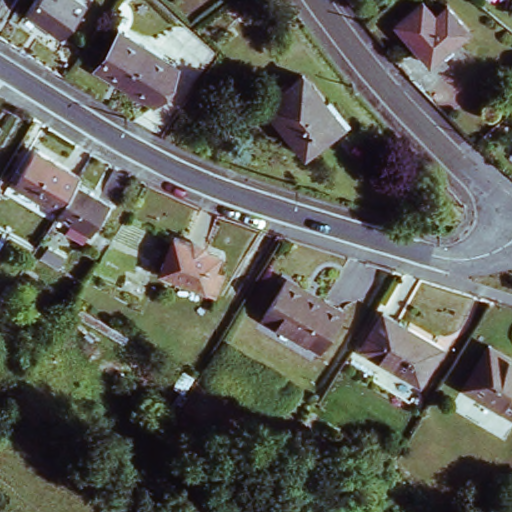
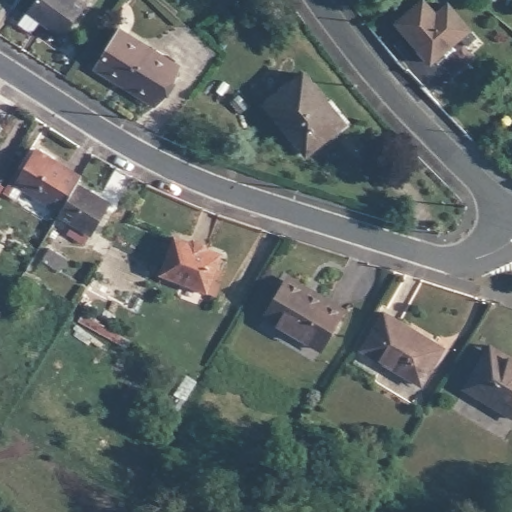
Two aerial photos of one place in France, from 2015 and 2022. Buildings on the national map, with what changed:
unchanged [(67,35),(32,11),(40,0),(90,0),(91,1),(67,35)]
unchanged [(418,0),(424,0),(435,13),(447,3),(467,27),(428,60),(394,20),(418,0)]
unchanged [(97,64),(122,28),(179,65),(155,100),(119,76),(117,78),(97,64)]
unchanged [(269,100),(306,70),(346,120),(309,150),(269,100)]
unchanged [(0,138),(0,135),(2,135),(0,138)]
unchanged [(2,199),(15,178),(34,145),(82,174),(77,184),(63,207),(27,186),(15,205),(2,199)]
unchanged [(114,200),(97,190),(114,164),(130,173),(114,200)]
unchanged [(63,207),(77,184),(111,204),(88,243),(69,233),(75,222),(60,212),(63,207)]
unchanged [(161,274),(175,238),(217,254),(211,271),(219,274),(212,293),(161,274)]
unchanged [(62,264),(53,279),(38,272),(47,257),(62,264)]
unchanged [(342,309),(321,345),(267,313),(286,280),(322,302),(324,299),(342,309)]
unchanged [(437,342),(417,379),(361,351),(381,313),(437,342)]
unchanged [(469,387),(491,344),(512,355),(512,410),(469,387)]
unchanged [(511,512),(498,512),(502,507),(511,512)]

